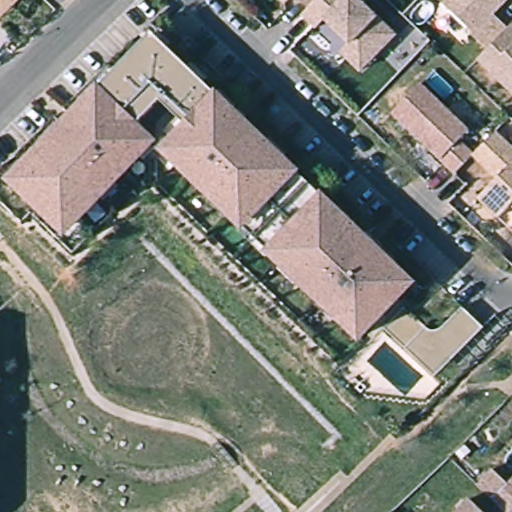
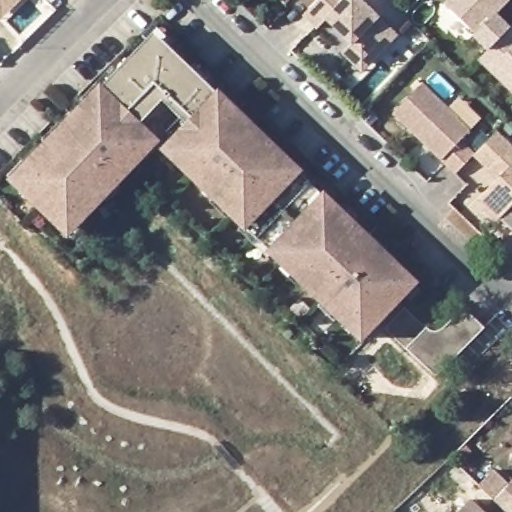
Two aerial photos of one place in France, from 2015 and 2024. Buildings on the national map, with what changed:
unchanged [(0,0),(26,0),(4,22),(0,19),(0,0)]
unchanged [(38,1),(37,0),(39,0),(38,1)]
unchanged [(313,12),(301,0),(324,0),(313,12)]
unchanged [(345,55),(354,47),(329,23),(321,32),(307,18),(313,12),(324,0),(359,0),(399,38),(373,65),(365,74),(345,55)]
unchanged [(472,39),(475,37),(444,8),(451,0),(511,0),(494,18),(509,31),(497,44),(487,53),(472,39)]
unchanged [(487,53),(497,44),(509,31),(512,27),(512,95),(479,63),(487,53)]
unchanged [(157,36),(417,286),(364,342),(159,145),(70,237),(15,183),(157,36)]
unchanged [(398,117),(425,88),(473,134),(464,145),(478,158),(460,177),(398,117)]
unchanged [(502,133),(512,143),(512,199),(499,212),(485,199),(502,181),(478,158),(502,133)]
unchanged [(424,331),(427,334),(431,335),(436,335),(440,333),(445,328),(462,311),(483,331),(435,380),(404,351),(424,331)]
unchanged [(504,492),(512,483),(512,512),(502,512),(498,508),(509,497),(504,492)]
unchanged [(481,512),(461,512),(470,502),(481,512)]
unchanged [(502,512),(494,512),(498,508),(502,512)]

